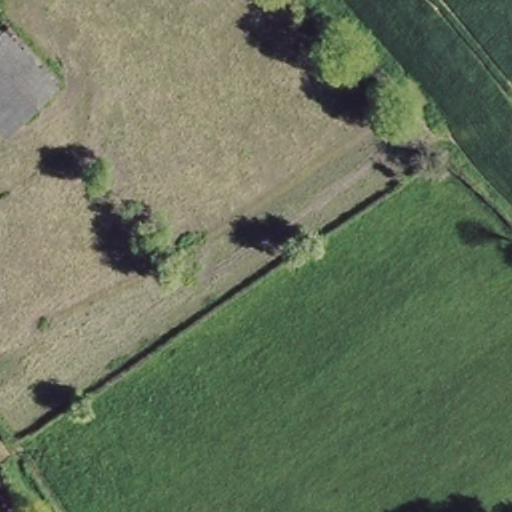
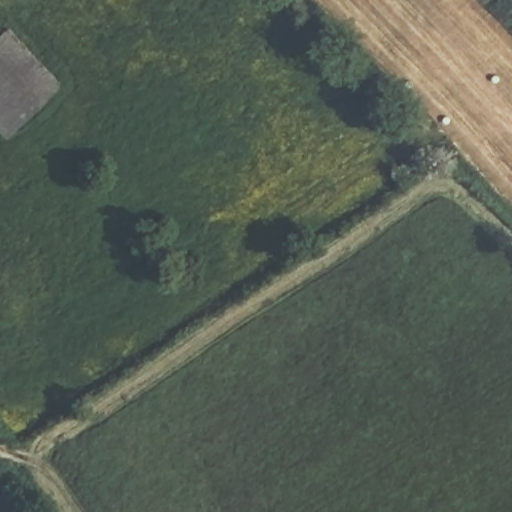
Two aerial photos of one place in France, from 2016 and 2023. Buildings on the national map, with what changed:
unchanged [(58,82),(6,136),(0,130),(0,33),(5,29),(58,82)]

